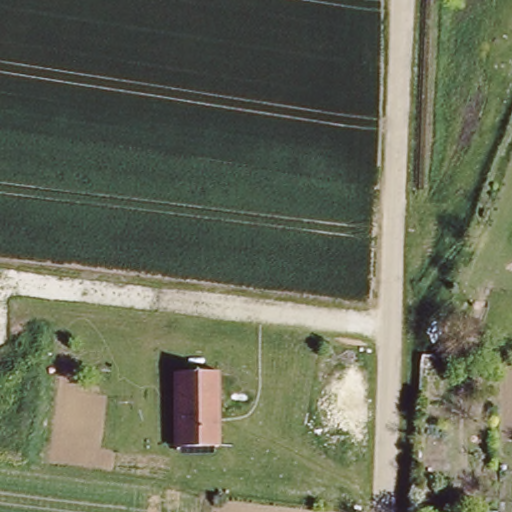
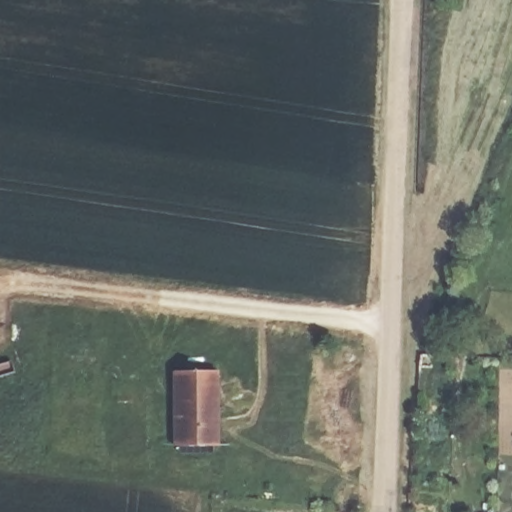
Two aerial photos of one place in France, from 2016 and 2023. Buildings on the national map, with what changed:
unchanged [(224,375),(221,451),(177,448),(180,373),(224,375)]

